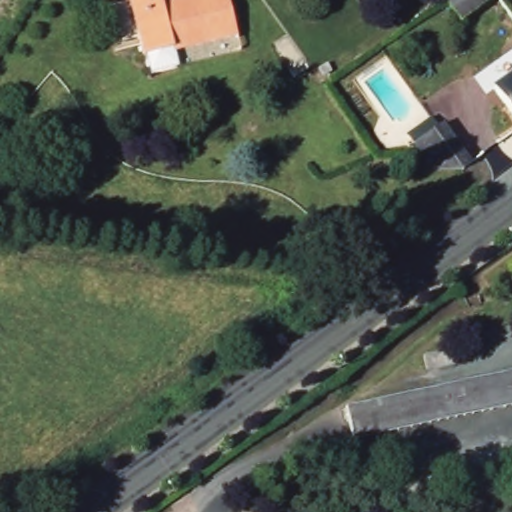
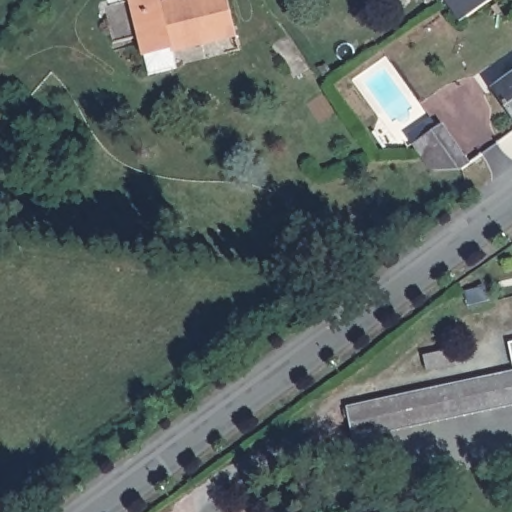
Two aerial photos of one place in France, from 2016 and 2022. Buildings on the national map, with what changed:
unchanged [(129,0),(162,0),(165,9),(199,0),(227,0),(239,39),(180,57),(179,50),(147,59),(141,39),(130,2),(129,0)]
unchanged [(461,26),(445,0),(497,0),(461,26)]
unchanged [(512,82),(512,111),(498,92),(512,82)]
unchanged [(473,162),(460,171),(433,171),(423,158),(453,137),(473,162)]
unchanged [(356,445),(347,413),(512,368),(512,403),(356,445)]

